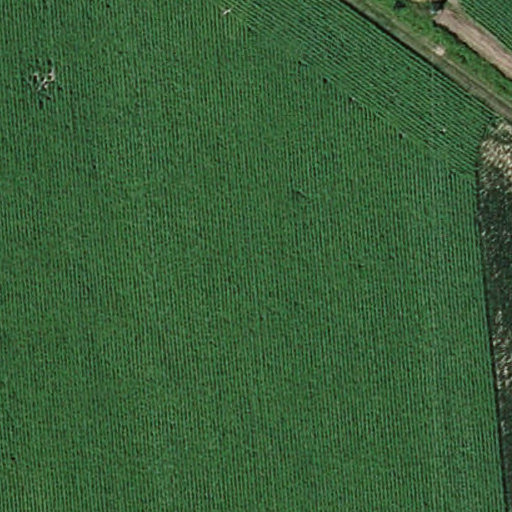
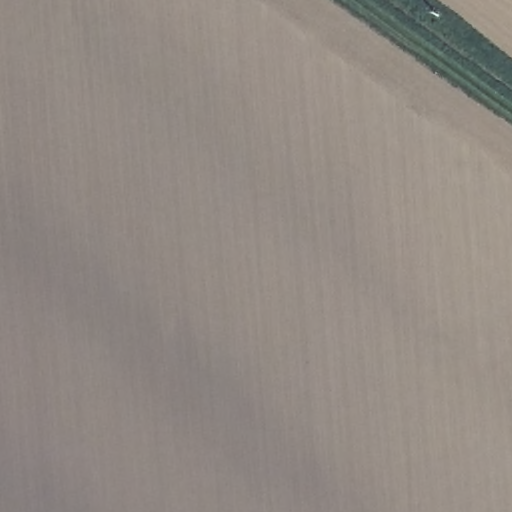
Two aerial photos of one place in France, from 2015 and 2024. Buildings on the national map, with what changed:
[]

